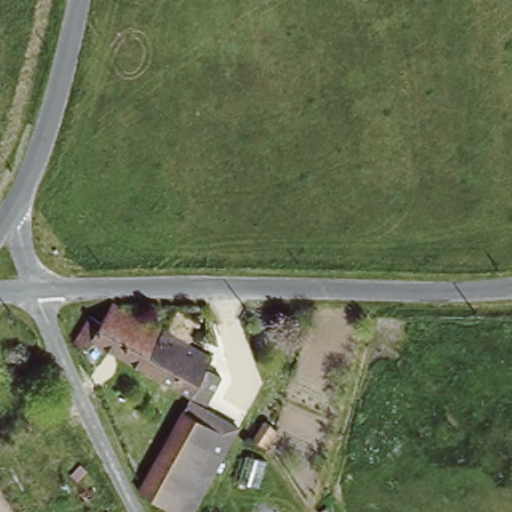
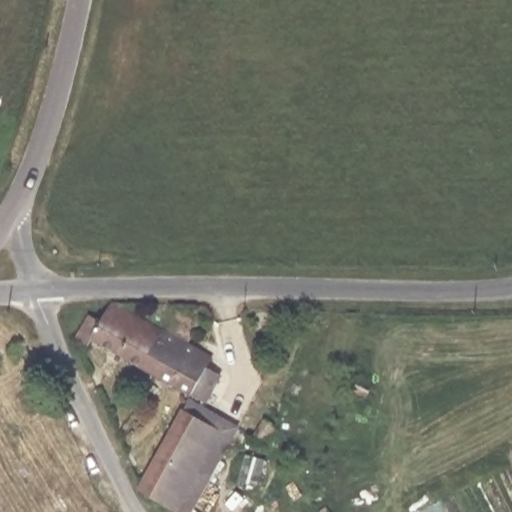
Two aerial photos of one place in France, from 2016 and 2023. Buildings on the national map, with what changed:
unchanged [(83,317),(96,323),(106,305),(113,305),(208,357),(199,369),(211,375),(196,400),(88,339),(82,349),(68,341),(83,317)]
unchanged [(168,428),(184,400),(231,428),(185,512),(176,512),(161,503),(135,487),(168,428)]
unchanged [(245,453),(264,457),(256,483),(236,478),(245,453)]

